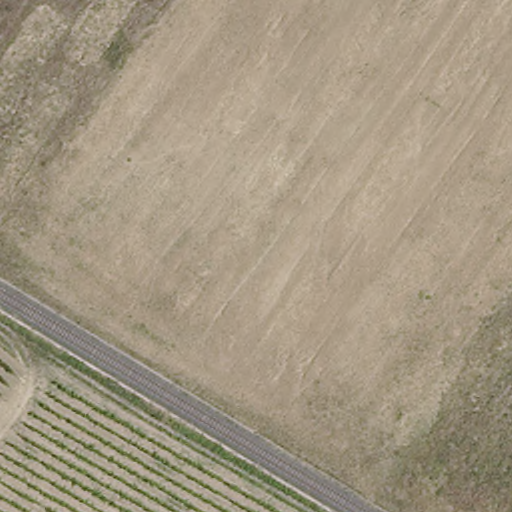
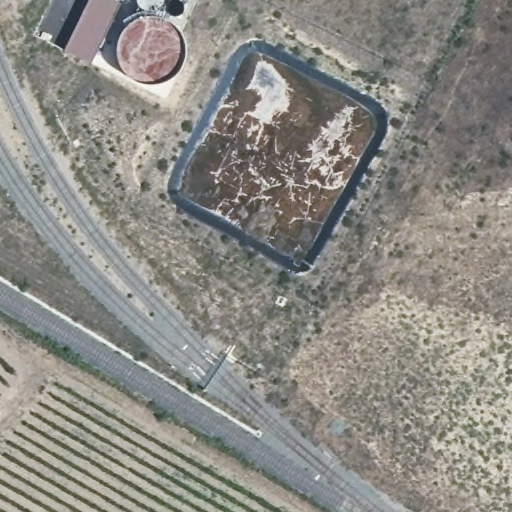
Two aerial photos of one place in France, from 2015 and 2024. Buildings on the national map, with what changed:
new [(64,48),(89,0),(114,0),(122,4),(91,62),(64,48)]

